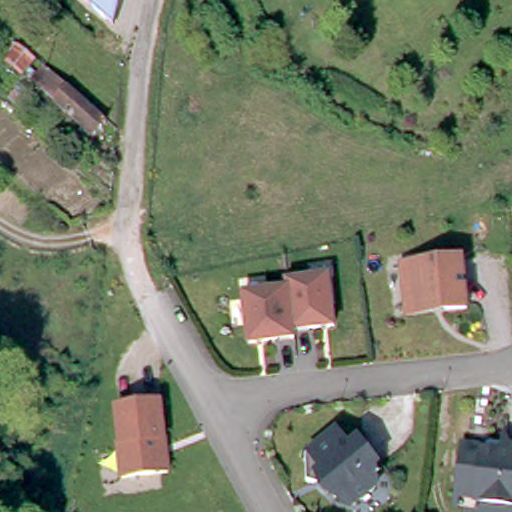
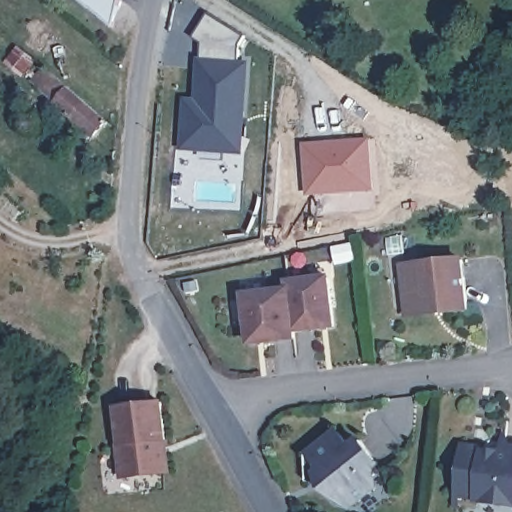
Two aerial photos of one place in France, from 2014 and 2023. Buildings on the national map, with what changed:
unchanged [(112,20),(97,7),(97,8),(87,0),(126,0),(125,5),(119,25),(112,20)]
new [(227,151),(184,148),(186,111),(187,101),(197,102),(202,43),(193,38),(210,13),(247,36),(242,46),(240,64),(247,65),(244,117),(241,152),(227,151)]
demolished [(65,36),(45,60),(31,48),(52,24),(65,36)]
unchanged [(100,144),(45,99),(61,79),(116,124),(100,144)]
new [(306,196),(302,143),(370,138),(374,191),(306,196)]
unchanged [(401,268),(460,262),(466,311),(445,314),(406,318),(405,312),(401,268)]
unchanged [(287,283),(287,276),(327,271),(332,319),(292,324),(293,332),(247,337),(242,289),(287,283)]
unchanged [(165,444),(160,445),(161,458),(167,462),(168,477),(120,482),(117,449),(120,448),(115,411),(160,406),(165,444)]
unchanged [(338,435),(350,452),(360,444),(379,469),(367,478),(377,492),(354,509),(344,496),(335,502),(320,482),(313,487),(307,485),(306,459),(338,435)]
unchanged [(457,485),(462,443),(484,445),(483,448),(502,449),(503,443),(512,444),(512,502),(476,497),(477,487),(457,485)]

